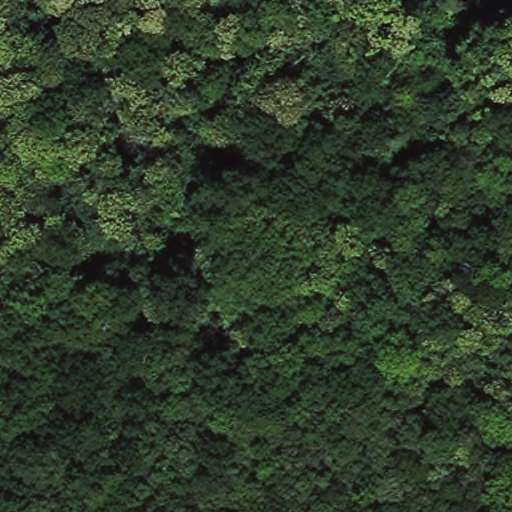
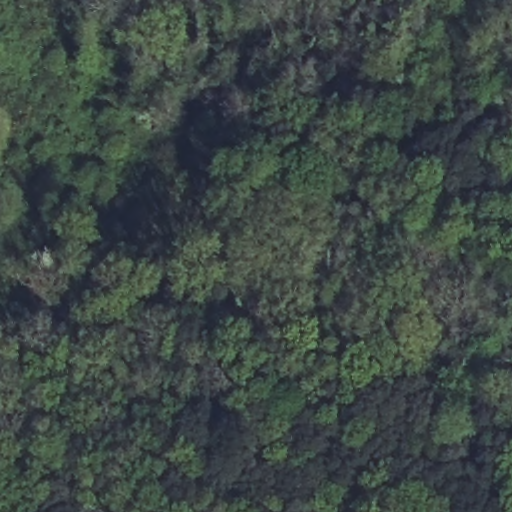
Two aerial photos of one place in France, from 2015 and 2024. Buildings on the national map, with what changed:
unchanged [(512,159),(512,176),(505,164),(512,159)]

